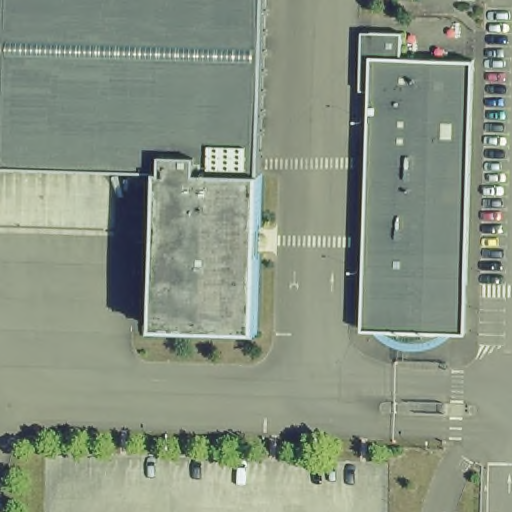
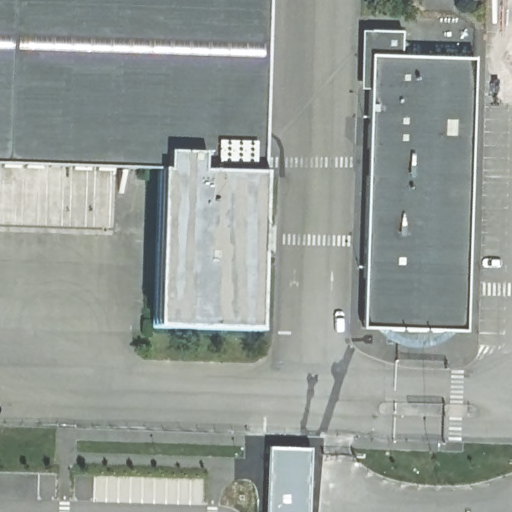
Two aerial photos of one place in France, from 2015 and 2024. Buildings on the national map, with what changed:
unchanged [(155,168),(0,164),(0,0),(263,0),(256,173),(251,331),(150,327),(155,168)]
unchanged [(370,55),(471,56),(465,328),(365,327),(370,55)]
new [(312,447),(310,512),(262,512),(266,446),(312,447)]

